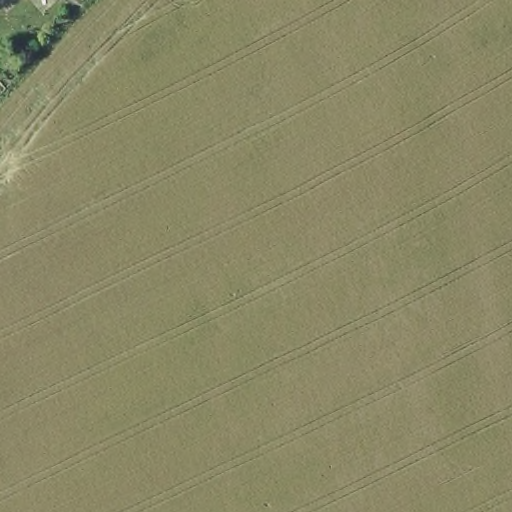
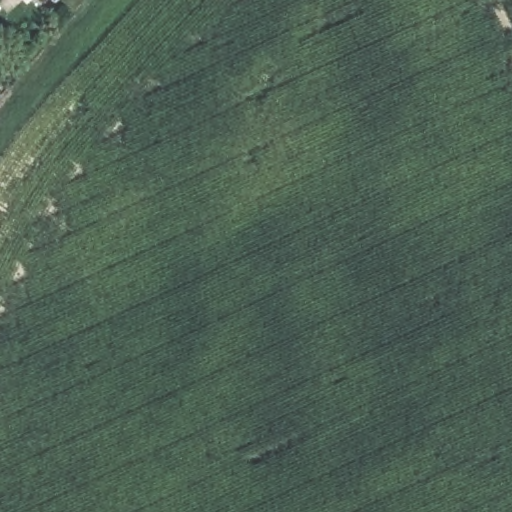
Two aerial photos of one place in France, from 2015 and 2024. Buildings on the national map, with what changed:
unchanged [(32,0),(35,0),(33,1),(32,0)]

